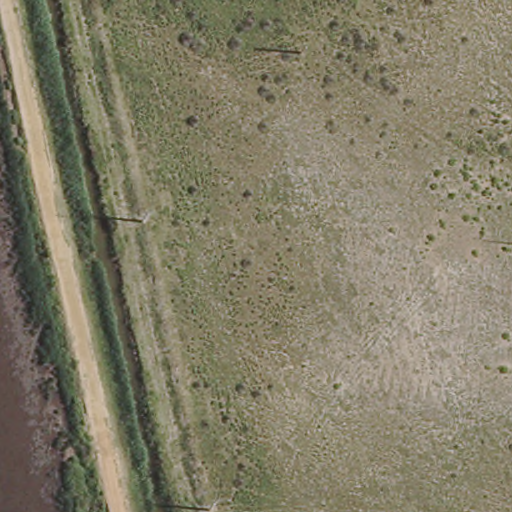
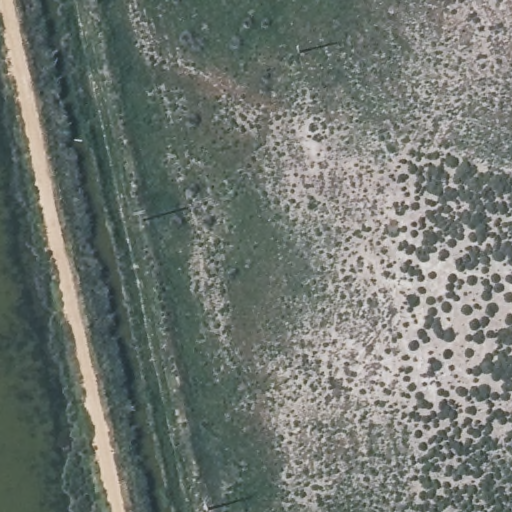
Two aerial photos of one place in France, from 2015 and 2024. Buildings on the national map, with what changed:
[]

